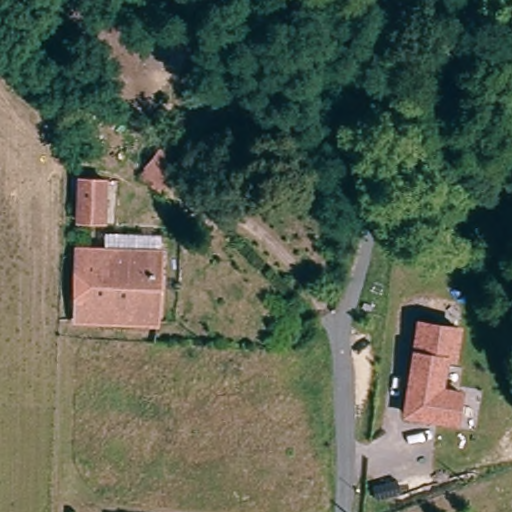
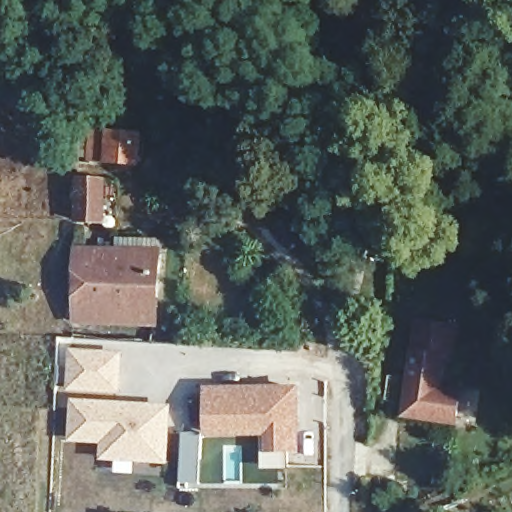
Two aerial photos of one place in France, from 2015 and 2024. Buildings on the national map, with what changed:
demolished [(126,147),(138,147),(137,163),(126,163),(126,147)]
unchanged [(170,170),(157,185),(147,173),(158,159),(170,170)]
demolished [(150,184),(137,199),(127,187),(138,173),(150,184)]
unchanged [(88,181),(106,181),(105,221),(77,221),(77,181),(82,181),(88,181)]
unchanged [(81,251),(155,252),(154,295),(161,296),(160,323),(102,320),(101,337),(79,336),(81,251)]
unchanged [(461,329),(457,363),(448,363),(446,389),(465,392),(458,429),(403,420),(412,353),(417,322),(461,329)]
new [(66,391),(70,349),(124,353),(121,394),(66,391)]
new [(275,435),(213,432),(216,390),(255,391),(266,392),(305,393),(302,453),(292,453),(291,470),(273,469),(273,452),(275,435)]
new [(100,460),(101,445),(70,442),(72,398),(174,403),(170,466),(100,460)]

